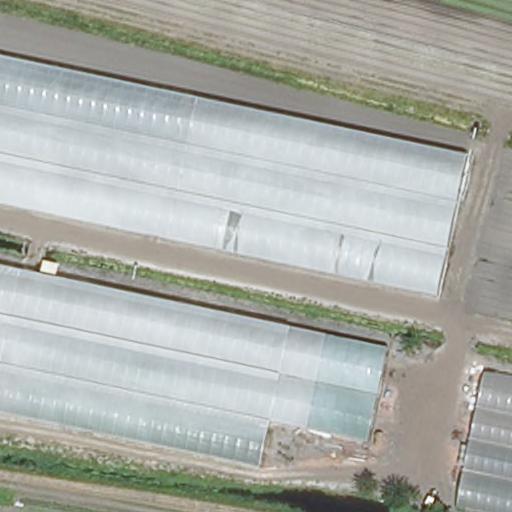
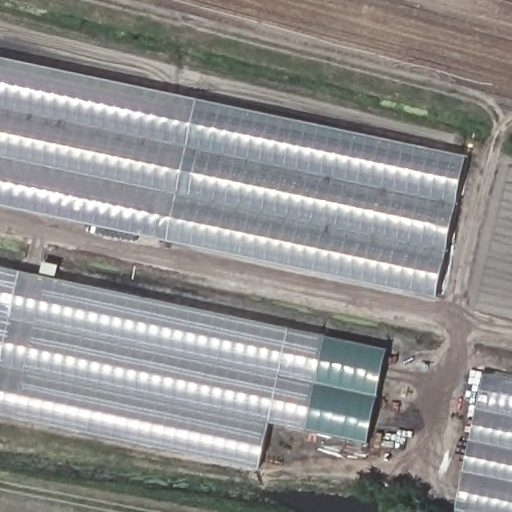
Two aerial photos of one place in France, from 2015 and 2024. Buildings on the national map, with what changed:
unchanged [(0,204),(0,56),(467,155),(440,297),(0,204)]
unchanged [(268,421),(260,466),(0,412),(0,267),(386,348),(367,442),(268,421)]
unchanged [(455,504),(482,373),(512,379),(512,512),(491,512),(455,504)]

